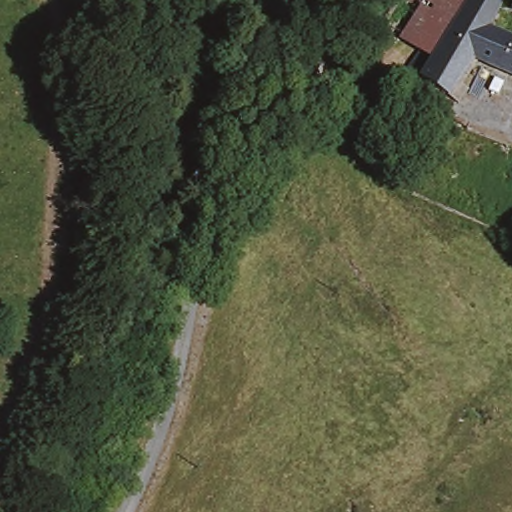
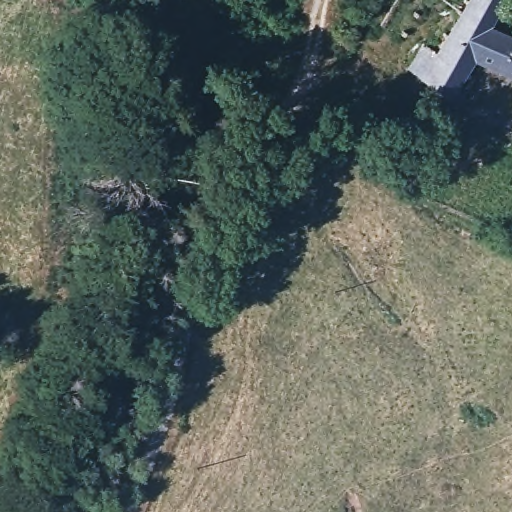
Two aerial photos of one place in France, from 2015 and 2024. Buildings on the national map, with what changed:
unchanged [(422,54),(400,39),(425,0),(470,0),(431,60),(422,54)]
unchanged [(474,60),(458,82),(469,89),(457,105),(410,72),(422,54),(431,60),(470,0),(490,0),(497,4),(491,17),(512,27),(512,78),(474,60)]

